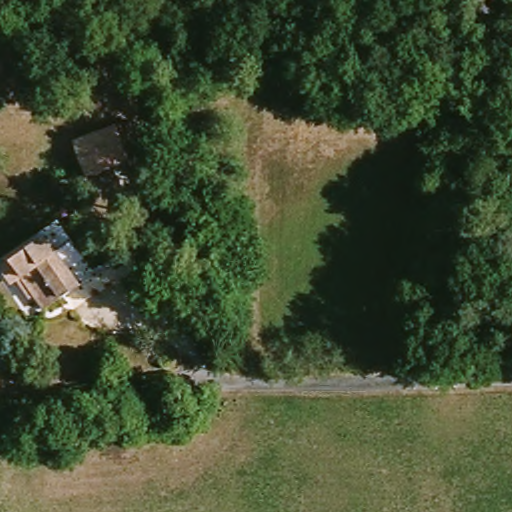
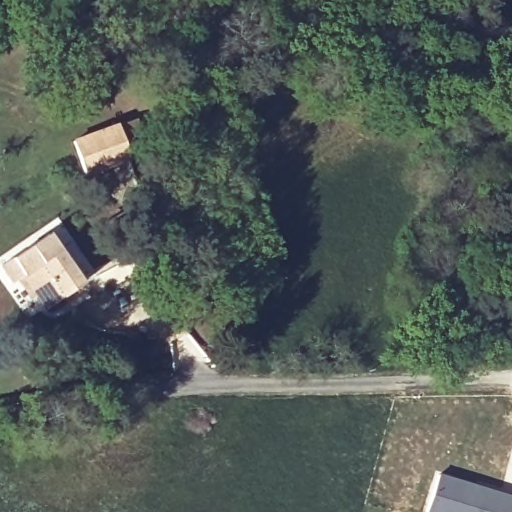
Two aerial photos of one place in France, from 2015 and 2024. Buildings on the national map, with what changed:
unchanged [(117,127),(129,160),(86,175),(74,142),(117,127)]
unchanged [(23,278),(18,282),(7,267),(53,235),(86,283),(51,309),(40,293),(35,296),(23,278)]
new [(512,494),(512,512),(425,512),(438,472),(512,494)]

